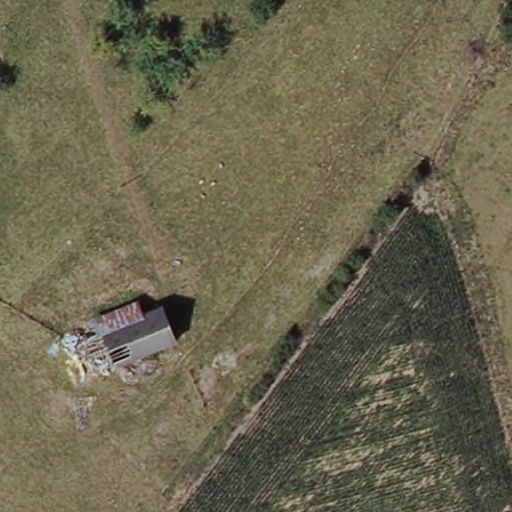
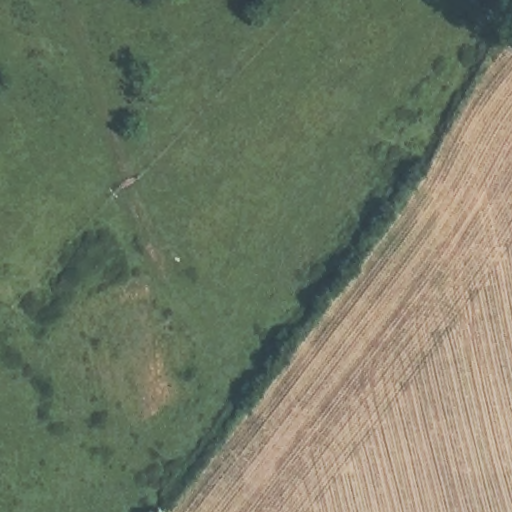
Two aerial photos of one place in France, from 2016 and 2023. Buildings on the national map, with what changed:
demolished [(163,308),(176,342),(84,378),(71,345),(163,308)]

